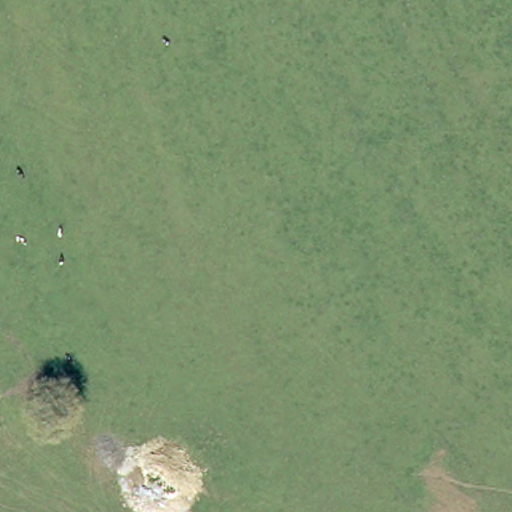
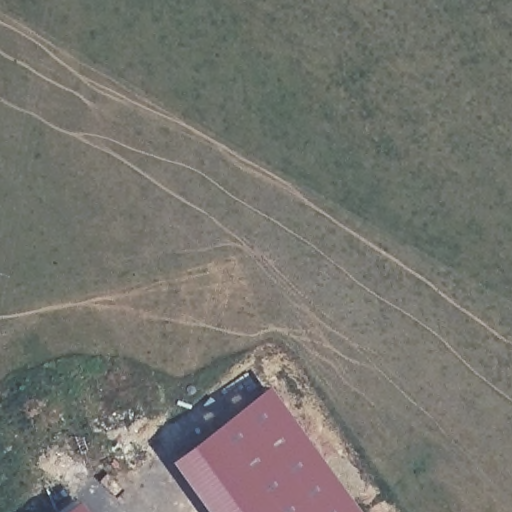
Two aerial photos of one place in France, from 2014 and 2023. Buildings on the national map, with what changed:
new [(162,460),(266,387),(354,512),(199,512),(162,460)]
new [(71,500),(80,512),(54,512),(71,500)]

